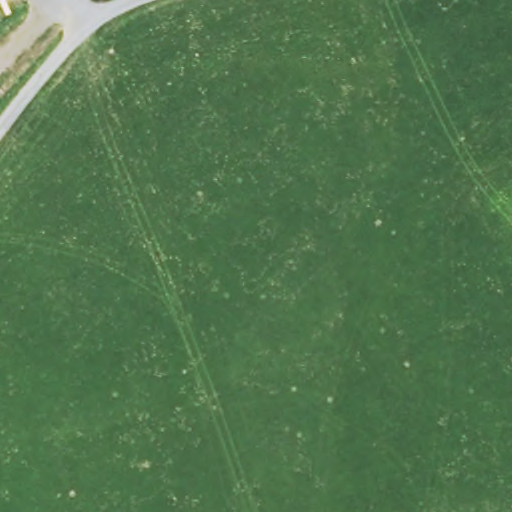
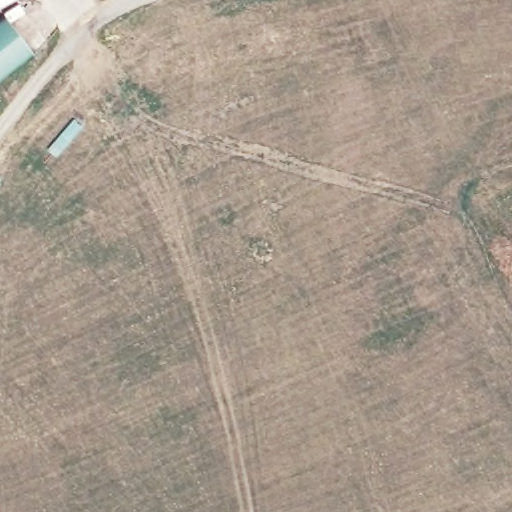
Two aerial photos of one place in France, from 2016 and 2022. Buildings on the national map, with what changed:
new [(31,55),(0,80),(0,21),(4,18),(31,55)]

